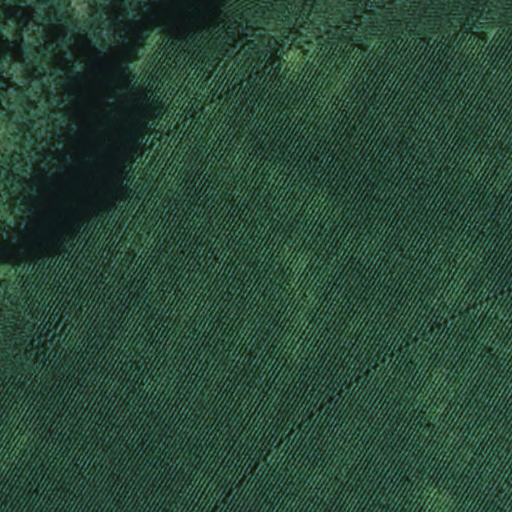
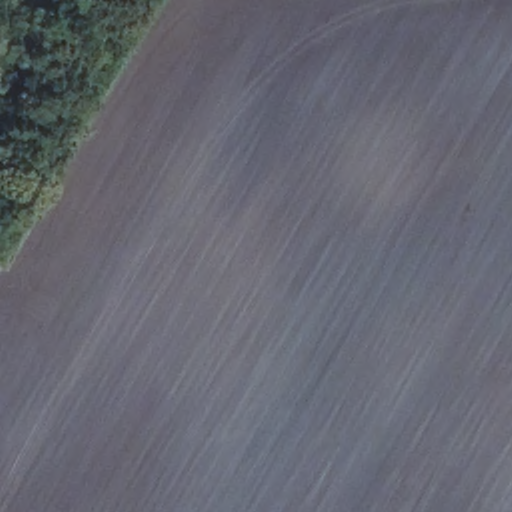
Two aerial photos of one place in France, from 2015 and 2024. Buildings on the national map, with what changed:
[]

